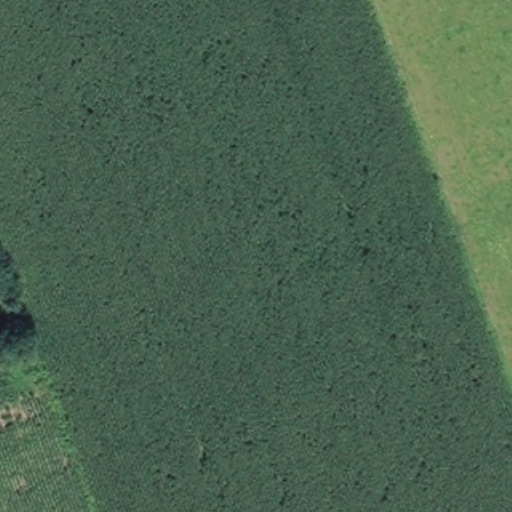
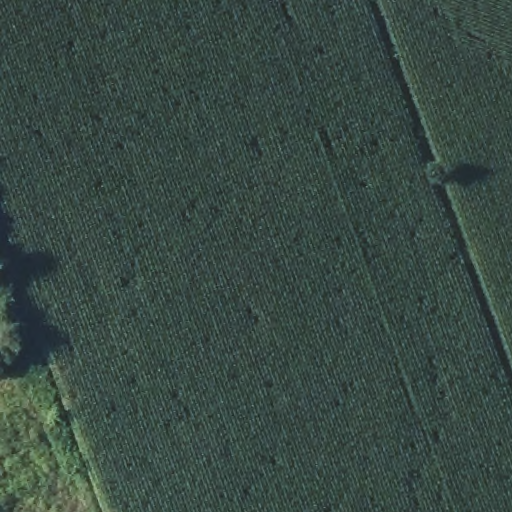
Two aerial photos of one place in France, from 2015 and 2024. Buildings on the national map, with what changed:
[]

